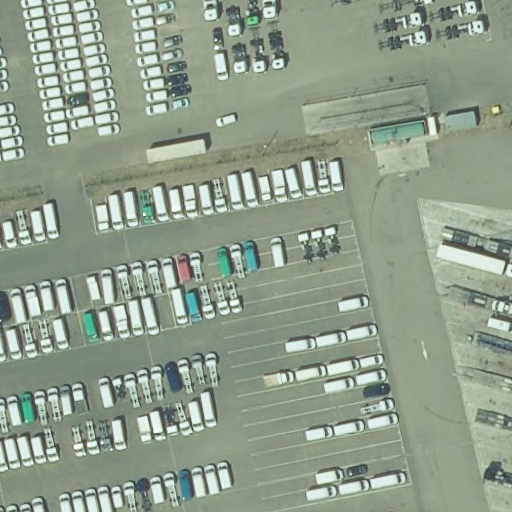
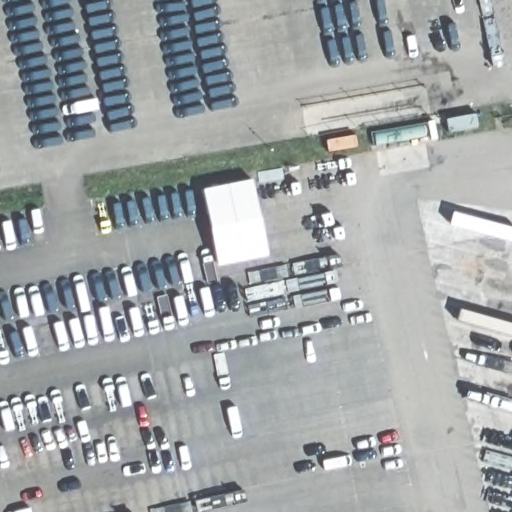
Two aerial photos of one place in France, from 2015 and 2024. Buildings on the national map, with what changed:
new [(251,177),(267,259),(210,269),(198,186),(251,177)]

